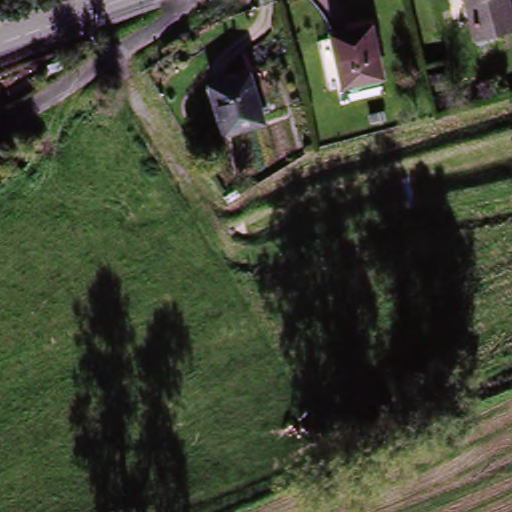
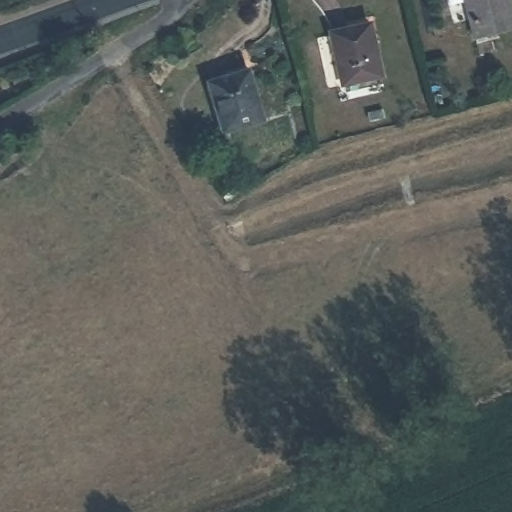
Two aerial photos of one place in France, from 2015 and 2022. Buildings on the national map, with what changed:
unchanged [(475,38),(466,0),(509,0),(512,11),(512,30),(475,38)]
unchanged [(366,27),(381,76),(343,88),(328,37),(366,27)]
unchanged [(440,67),(449,102),(435,106),(426,71),(440,67)]
unchanged [(268,119),(228,131),(226,125),(220,126),(210,95),(216,94),(212,80),(252,68),(268,119)]

